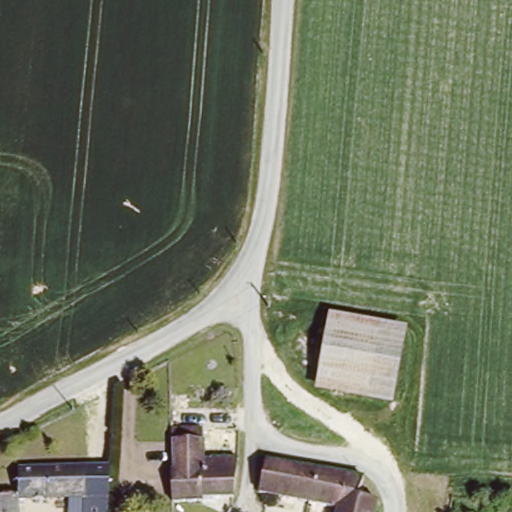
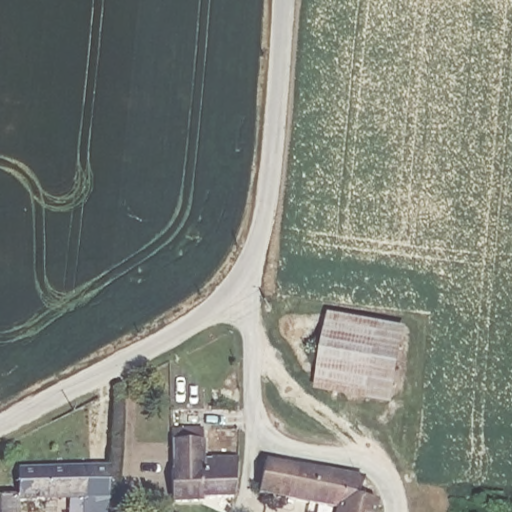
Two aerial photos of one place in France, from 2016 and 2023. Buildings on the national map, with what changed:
unchanged [(410,327),(394,408),(315,392),(330,313),(410,327)]
unchanged [(205,503),(205,510),(173,509),(172,434),(207,433),(207,460),(240,459),(232,503),(205,503)]
unchanged [(72,508),(72,493),(22,491),(23,461),(90,463),(89,509),(72,508)]
unchanged [(89,509),(90,463),(112,465),(111,512),(72,512),(72,508),(89,509)]
unchanged [(337,509),(262,497),(265,468),(267,463),(363,479),(364,480),(363,488),(372,489),(370,503),(377,505),(376,512),(337,512),(337,509)]
unchanged [(3,511),(4,490),(22,491),(21,512),(3,511)]

